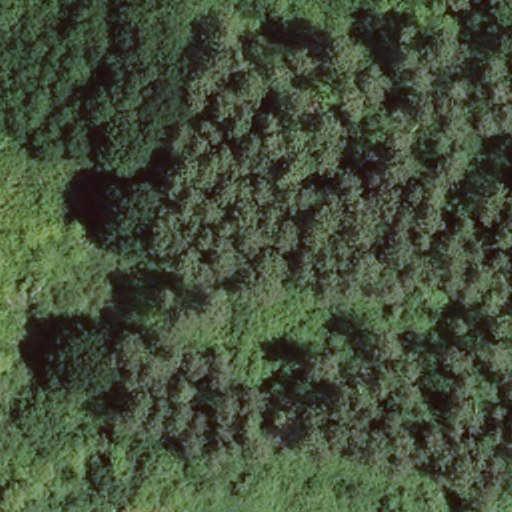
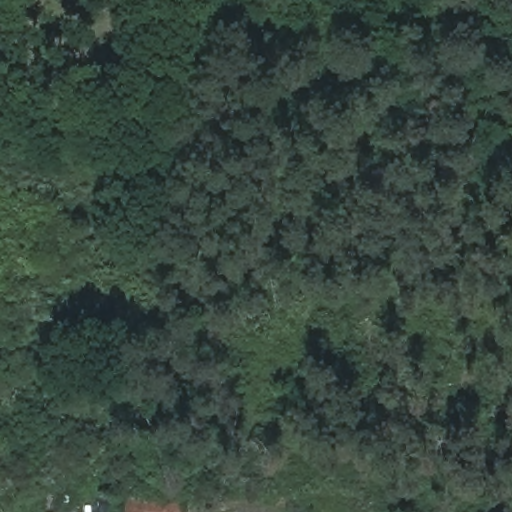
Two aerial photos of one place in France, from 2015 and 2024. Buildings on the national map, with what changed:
unchanged [(181,500),(181,512),(130,512),(130,496),(181,500)]

